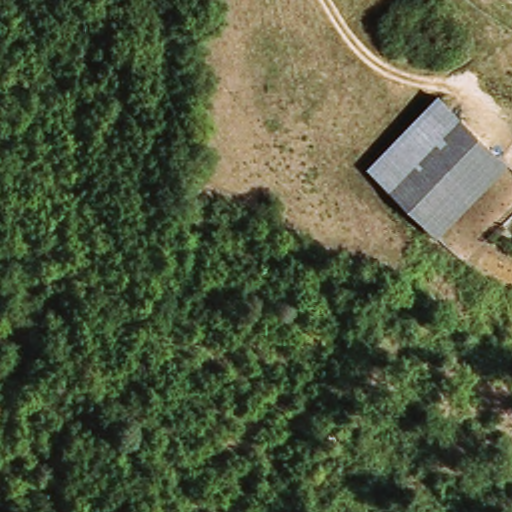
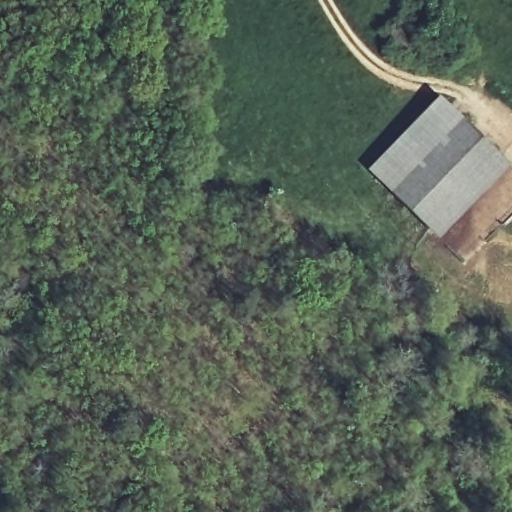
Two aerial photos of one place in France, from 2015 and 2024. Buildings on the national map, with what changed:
unchanged [(512,163),(442,238),(370,170),(442,96),(512,162),(512,163)]

